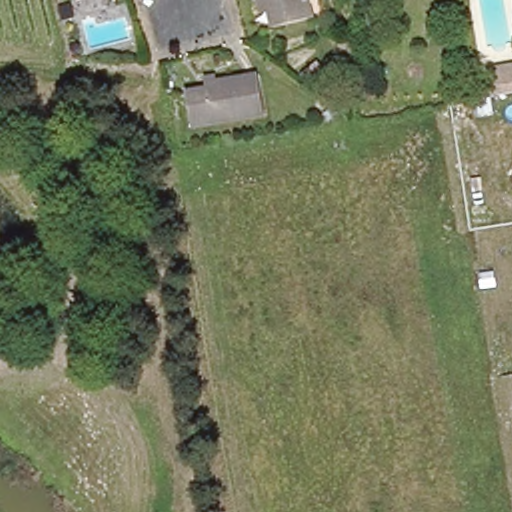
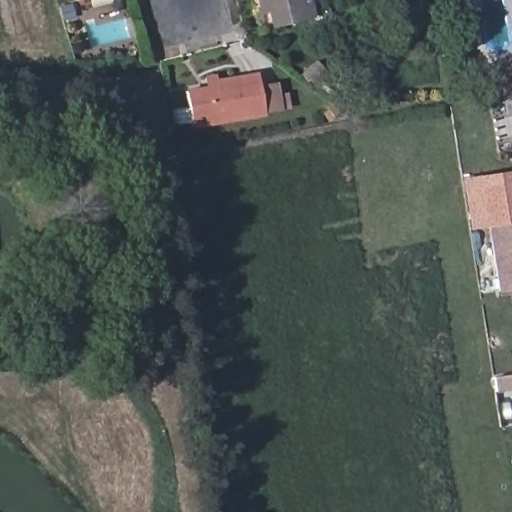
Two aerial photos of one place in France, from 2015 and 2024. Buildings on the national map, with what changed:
unchanged [(78,15),(74,0),(110,0),(112,6),(78,15)]
unchanged [(259,0),(307,0),(312,18),(272,26),(268,10),(262,11),(260,1),(259,0)]
unchanged [(58,7),(68,4),(71,16),(61,19),(58,7)]
unchanged [(512,92),(494,95),(489,69),(512,64),(512,92)]
unchanged [(265,115),(191,125),(186,91),(207,89),(205,77),(215,76),(216,81),(258,75),(265,115)]
new [(471,230),(463,178),(479,175),(512,170),(512,222),(487,227),(471,230)]
new [(512,293),(498,295),(487,227),(512,222),(512,293)]

